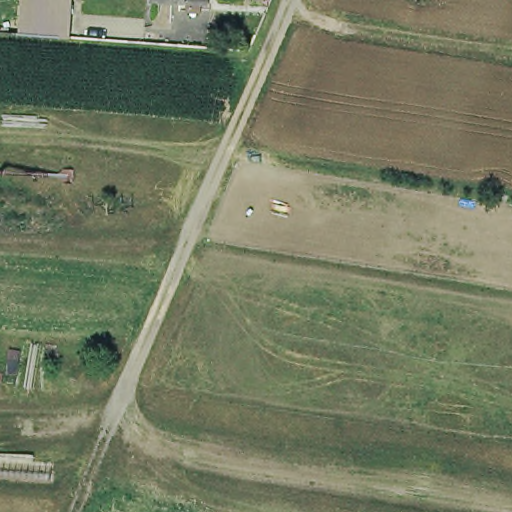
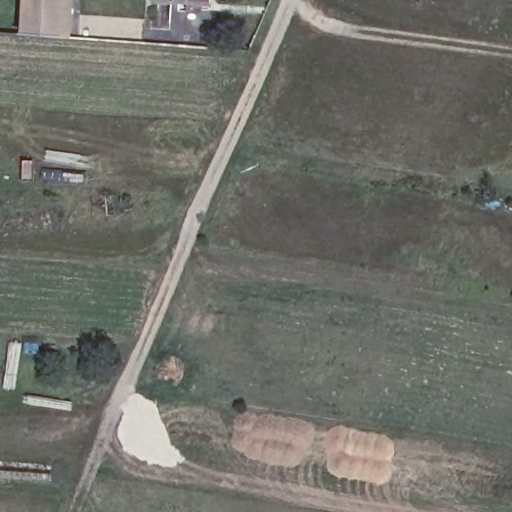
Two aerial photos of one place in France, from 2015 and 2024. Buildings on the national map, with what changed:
unchanged [(18,0),(66,0),(63,38),(50,37),(16,35),(18,0)]
unchanged [(188,3),(151,1),(152,0),(208,0),(208,4),(201,4),(201,13),(188,13),(188,3)]

